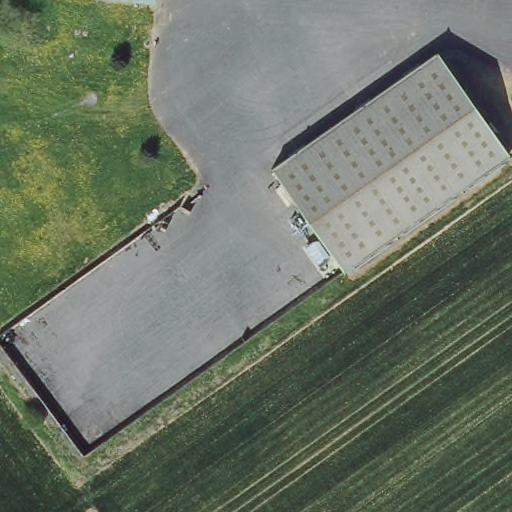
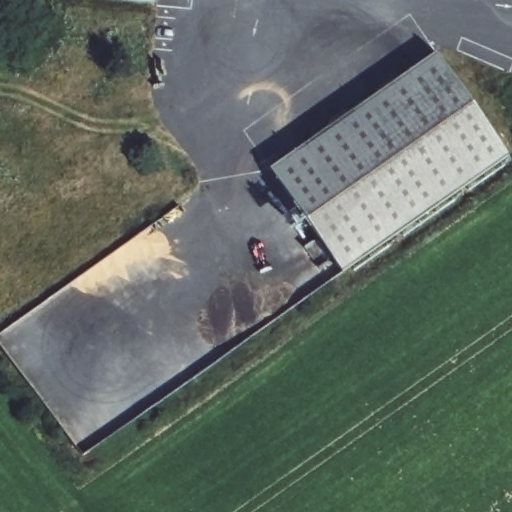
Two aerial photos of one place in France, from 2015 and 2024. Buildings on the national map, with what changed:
unchanged [(144,0),(160,0),(160,2),(144,0)]
unchanged [(440,49),(512,152),(512,153),(346,272),(271,168),(440,49)]

